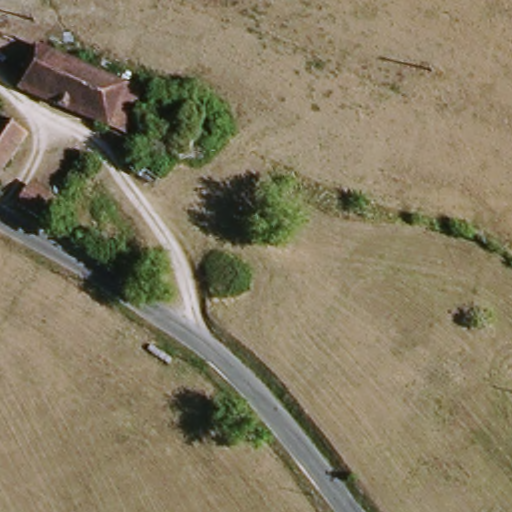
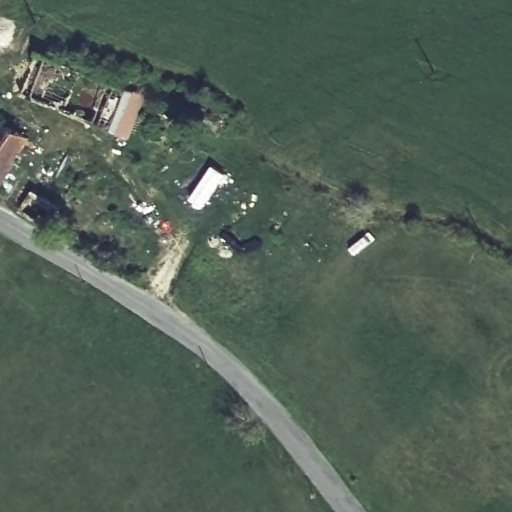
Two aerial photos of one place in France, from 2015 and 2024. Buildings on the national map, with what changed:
unchanged [(19,93),(38,50),(146,101),(126,143),(19,93)]
unchanged [(0,188),(0,124),(27,141),(0,188)]
unchanged [(68,202),(80,204),(55,240),(21,223),(36,203),(60,212),(68,202)]

